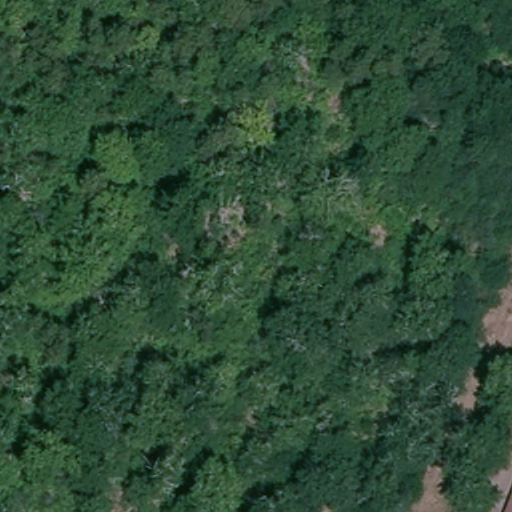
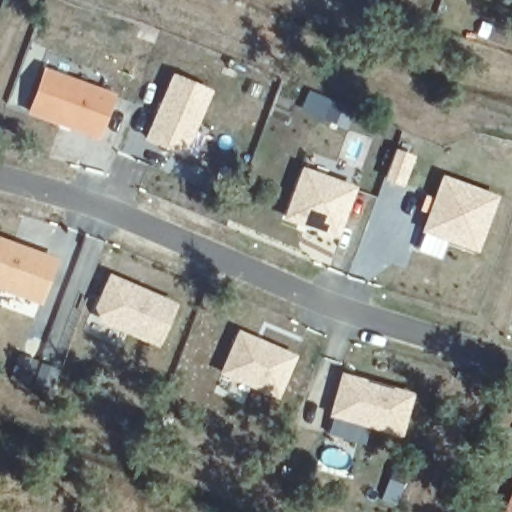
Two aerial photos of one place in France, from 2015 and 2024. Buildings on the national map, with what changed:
new [(44,67),(118,94),(100,140),(27,114),(44,67)]
new [(185,158),(145,143),(174,75),(213,91),(185,158)]
new [(284,221),(302,168),(357,187),(339,239),(284,221)]
new [(423,233),(444,177),(500,197),(477,254),(423,233)]
new [(42,305),(0,290),(0,236),(60,258),(42,305)]
new [(177,304),(159,347),(101,325),(95,307),(110,275),(177,304)]
new [(298,356),(277,400),(221,375),(240,331),(298,356)]
new [(21,355),(61,370),(51,395),(11,378),(21,355)]
new [(415,395),(403,439),(330,418),(341,375),(415,395)]
unchanged [(508,512),(512,504),(512,512),(508,512)]

